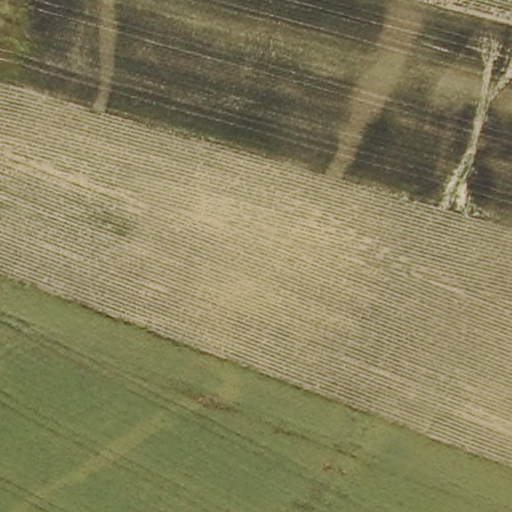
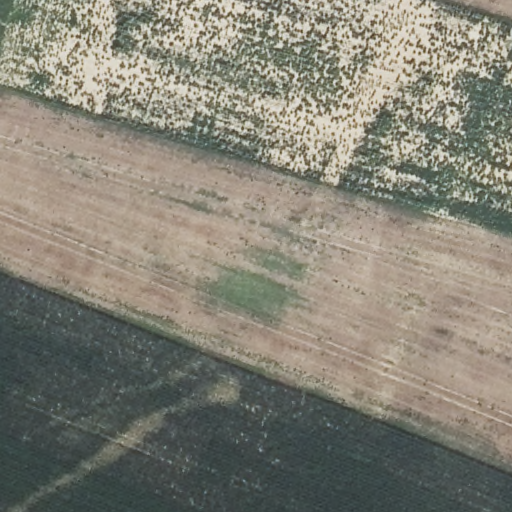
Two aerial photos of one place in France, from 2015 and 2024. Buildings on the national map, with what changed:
[]

